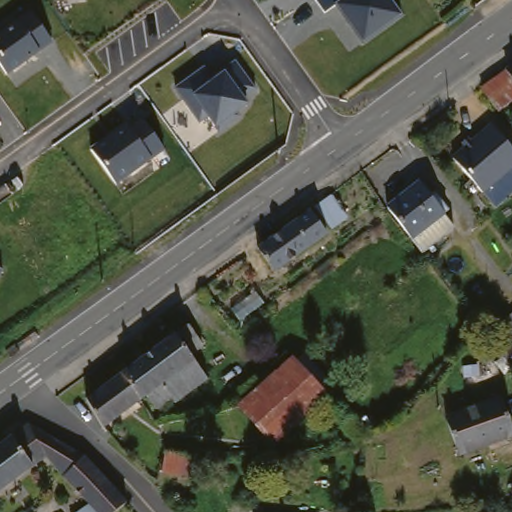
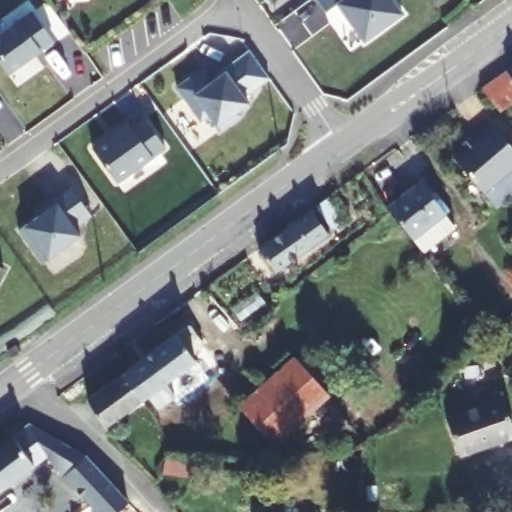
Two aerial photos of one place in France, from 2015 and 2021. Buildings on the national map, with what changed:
unchanged [(336,3),(325,12),(316,0),(393,0),(403,14),(363,43),(336,3)]
unchanged [(0,63),(0,34),(19,21),(21,23),(32,13),(54,42),(41,52),(40,50),(8,74),(0,63)]
unchanged [(175,88),(204,66),(214,77),(224,70),(236,60),(257,89),(245,98),(249,103),(237,113),(240,117),(218,132),(215,127),(207,116),(200,121),(175,88)]
unchanged [(492,81),(512,67),(512,104),(509,105),(502,110),(483,87),(492,81)]
unchanged [(92,149),(126,123),(132,130),(143,119),(167,149),(153,159),(152,158),(117,184),(92,149)]
unchanged [(512,196),(497,209),(484,195),(452,161),(489,127),(512,151),(512,196)]
new [(18,230),(25,226),(57,205),(53,198),(70,186),(92,216),(75,227),(81,235),(48,258),(42,262),(18,230)]
unchanged [(425,256),(414,243),(391,215),(420,189),(444,217),(442,220),(452,231),(425,256)]
unchanged [(275,275),(253,248),(328,197),(347,220),(275,275)]
unchanged [(3,269),(0,274),(0,267),(3,269)]
unchanged [(512,364),(485,335),(505,317),(512,325),(512,364)]
unchanged [(187,327),(197,342),(188,349),(195,359),(179,370),(191,386),(142,417),(131,402),(98,424),(80,398),(187,327)]
unchanged [(293,361),(314,386),(323,379),(324,381),(331,389),(323,396),(328,400),(309,416),(274,444),(242,404),(293,361)]
unchanged [(500,401),(510,438),(456,455),(446,419),(500,401)]
unchanged [(44,441),(69,458),(109,500),(112,504),(102,512),(85,512),(44,464),(0,496),(0,440),(19,425),(44,441)]
unchanged [(512,509),(512,512),(508,512),(509,508),(512,509)]

